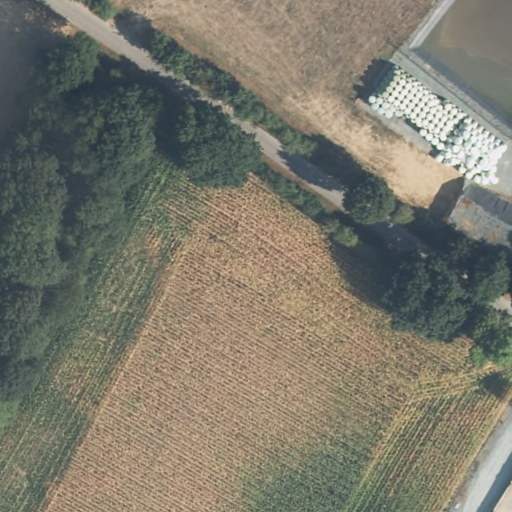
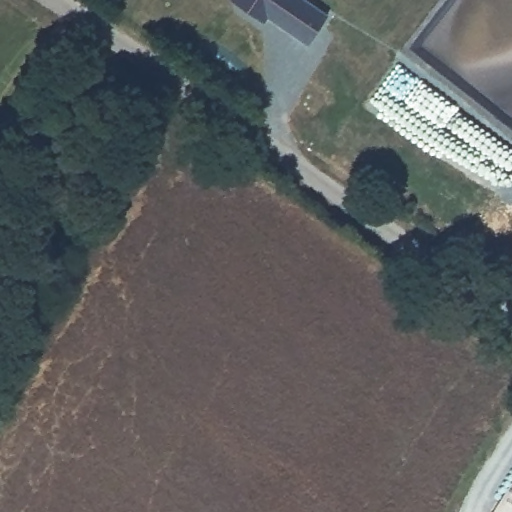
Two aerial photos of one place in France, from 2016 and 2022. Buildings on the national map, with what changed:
new [(306,45),(267,18),(265,23),(230,0),(308,0),(328,15),(306,45)]

